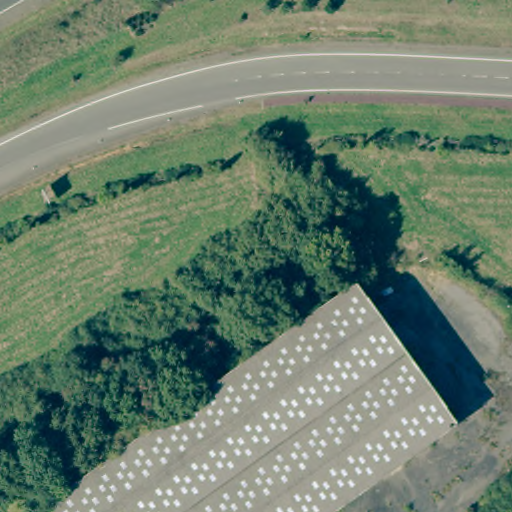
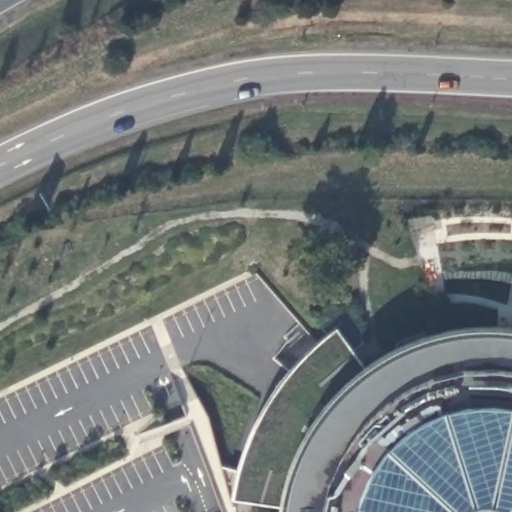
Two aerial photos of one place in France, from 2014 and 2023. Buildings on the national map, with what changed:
demolished [(331,512),(28,512),(354,286),(452,428),(331,512)]
new [(264,405),(296,363),(337,326),(364,367),(394,348),(436,333),(493,330),(512,333),(512,512),(281,512),(281,503),(234,497),(241,463),(264,405)]

